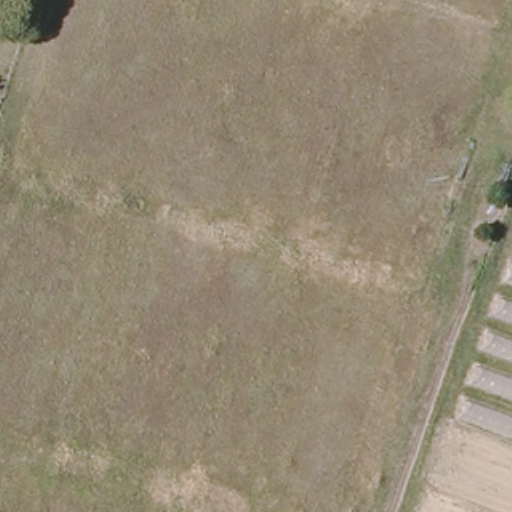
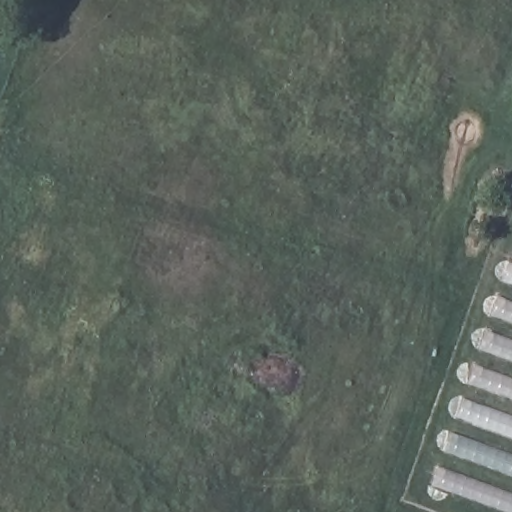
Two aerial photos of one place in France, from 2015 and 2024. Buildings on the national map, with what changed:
demolished [(512,261),(512,512),(423,512),(507,259),(512,261)]

